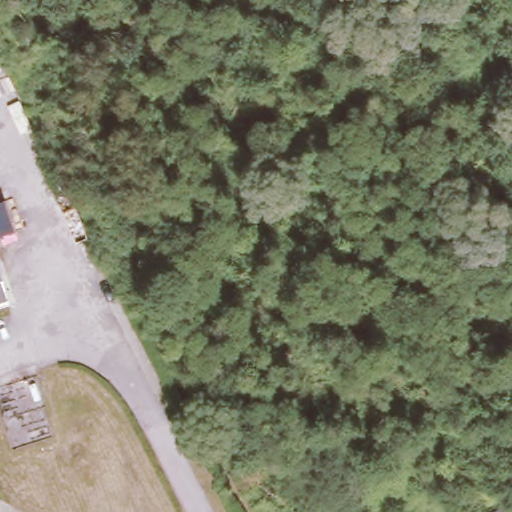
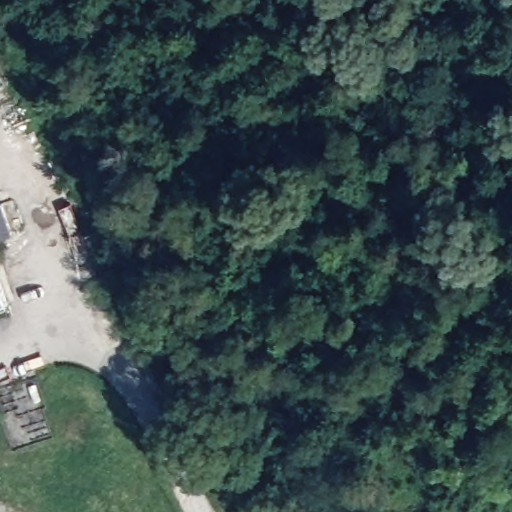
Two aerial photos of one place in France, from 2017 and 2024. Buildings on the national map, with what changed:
unchanged [(6,196),(16,193),(26,222),(16,225),(0,231),(0,198),(6,196)]
unchanged [(14,297),(0,302),(0,256),(14,297)]

